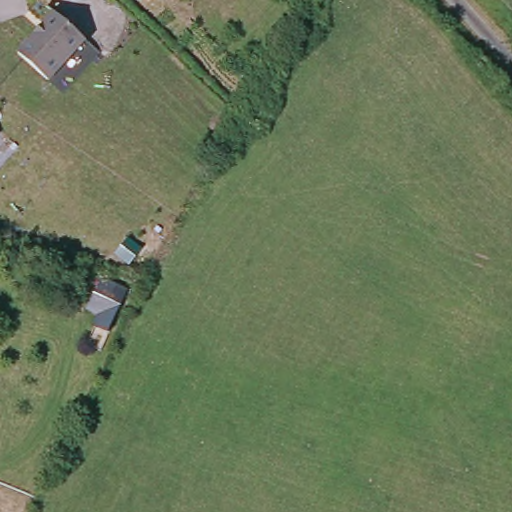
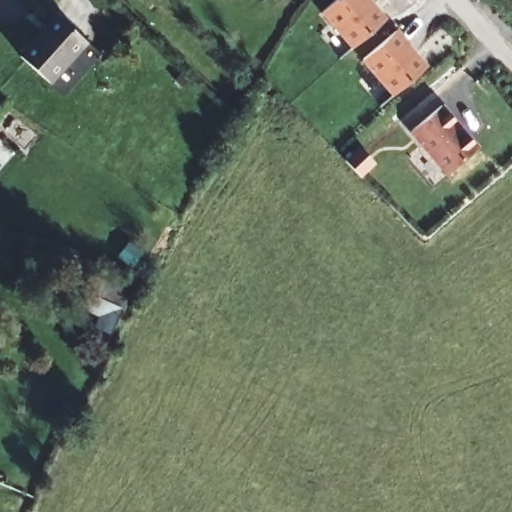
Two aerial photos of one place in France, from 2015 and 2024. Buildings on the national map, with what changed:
new [(340,60),(317,34),(330,24),(322,14),(336,0),(368,0),(385,20),(340,60)]
unchanged [(7,44),(17,34),(21,37),(45,10),(73,39),(37,76),(7,44)]
new [(427,66),(379,104),(359,81),(369,75),(358,62),(397,29),(427,66)]
unchanged [(73,39),(88,54),(50,89),(37,76),(73,39)]
new [(480,146),(447,175),(408,131),(444,103),(480,146)]

